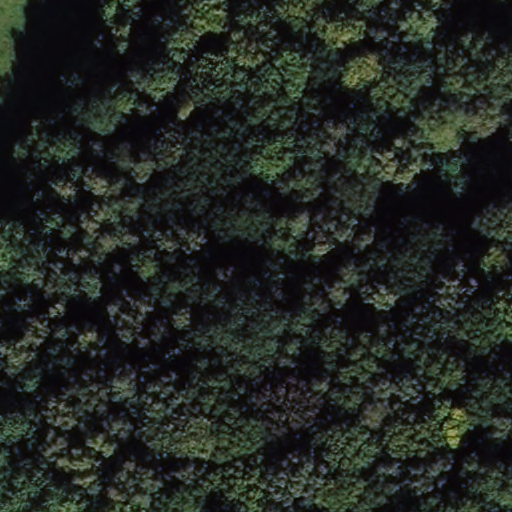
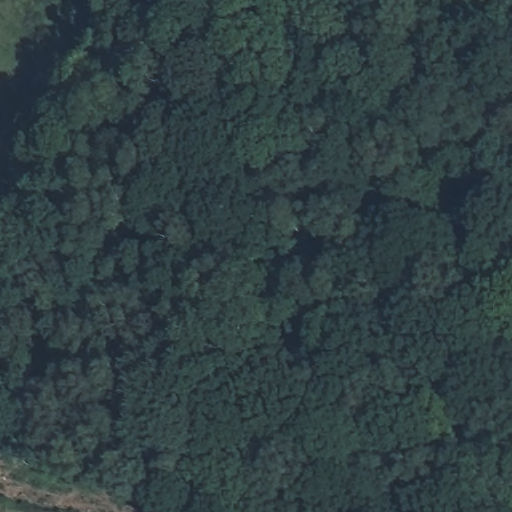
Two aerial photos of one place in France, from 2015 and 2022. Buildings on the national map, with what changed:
[]

